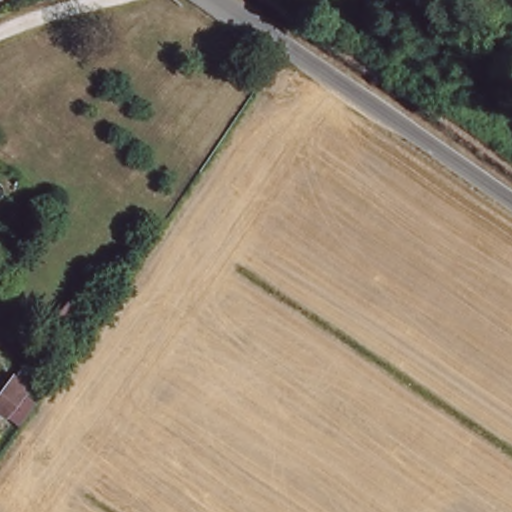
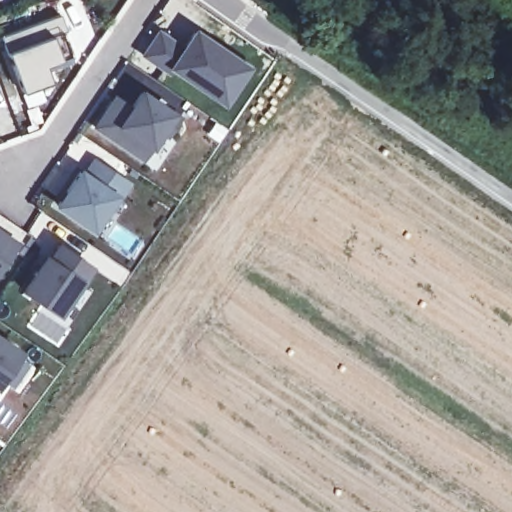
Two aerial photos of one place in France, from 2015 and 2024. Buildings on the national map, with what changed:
new [(57,13),(68,32),(63,35),(75,62),(53,69),(60,89),(26,96),(1,32),(57,13)]
new [(183,50),(195,32),(244,65),(222,103),(172,66),(171,73),(144,55),(155,30),(183,50)]
new [(131,103),(141,89),(183,117),(144,165),(95,132),(118,93),(131,103)]
new [(138,187),(105,241),(57,210),(92,158),(138,187)]
new [(2,291),(0,289),(0,227),(27,247),(2,291)]
new [(104,272),(70,325),(26,298),(55,247),(104,272)]
new [(4,395),(0,392),(0,337),(30,358),(4,395)]
demolished [(35,404),(20,424),(8,414),(6,416),(0,411),(0,393),(14,376),(28,387),(23,393),(35,404)]

